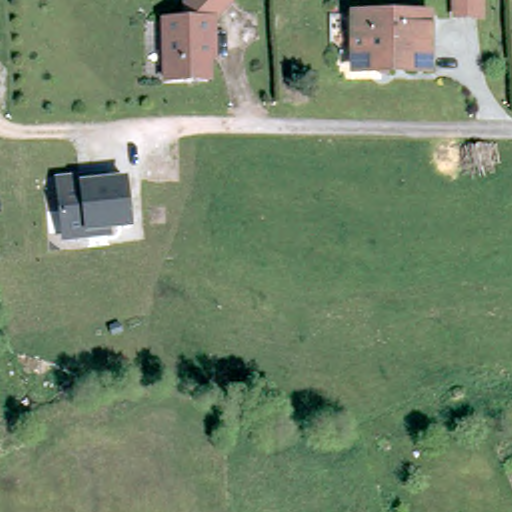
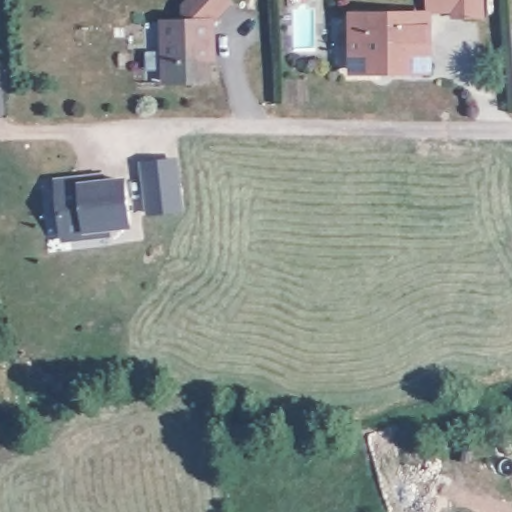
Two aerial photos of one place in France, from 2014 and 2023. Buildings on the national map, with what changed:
unchanged [(228,1),(214,20),(213,45),(208,45),(209,85),(166,86),(166,23),(178,23),(177,16),(191,0),(225,0),(228,1)]
unchanged [(453,0),(484,0),(486,18),(475,19),(456,21),(453,0)]
unchanged [(395,75),(355,79),(351,24),(426,18),(429,52),(431,72),(395,75)]
new [(177,157),(184,211),(146,217),(139,162),(177,157)]
unchanged [(126,174),(134,233),(61,238),(55,178),(126,174)]

